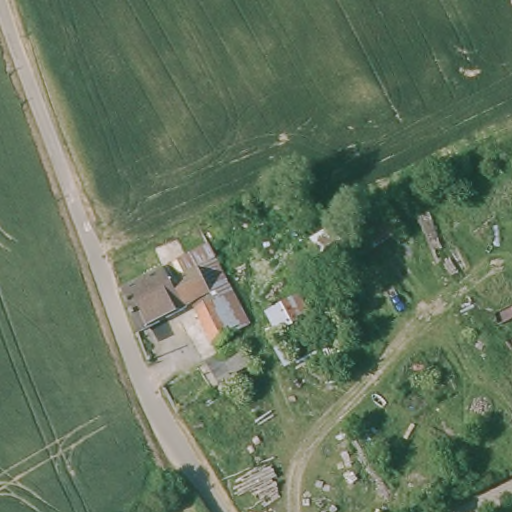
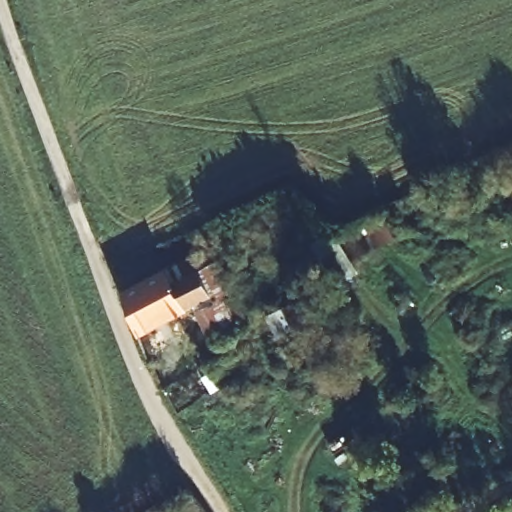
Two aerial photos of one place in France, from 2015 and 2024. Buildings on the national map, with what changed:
unchanged [(309,242),(331,227),(334,232),(379,212),(398,235),(354,262),(359,269),(336,282),(309,242)]
unchanged [(238,333),(218,345),(196,303),(139,332),(129,306),(120,285),(164,267),(174,285),(202,270),(238,333)]
unchanged [(263,313),(299,293),(311,317),(276,337),(263,313)]
unchanged [(229,378),(231,387),(224,390),(221,385),(215,383),(204,362),(218,355),(229,378)]

